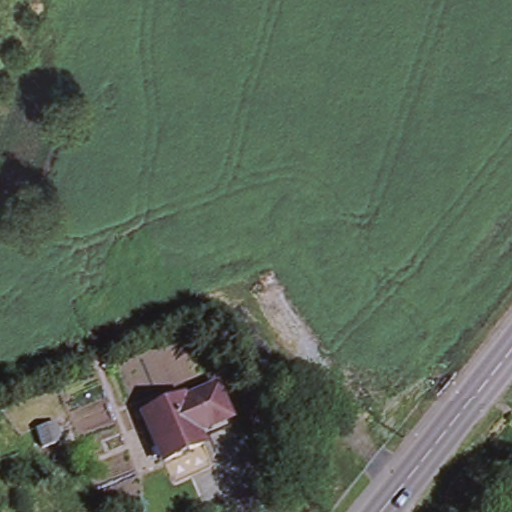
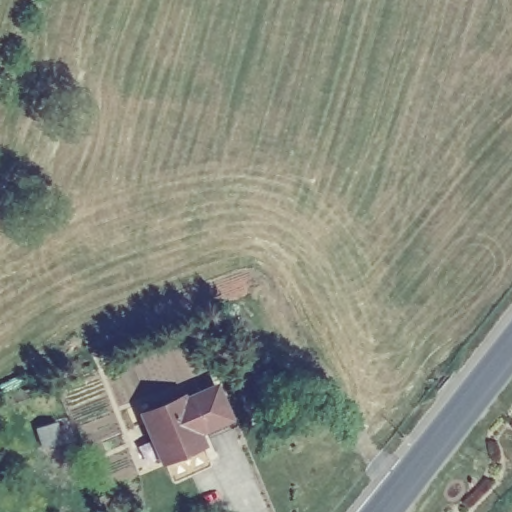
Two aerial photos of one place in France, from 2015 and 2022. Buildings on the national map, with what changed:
unchanged [(229,412),(194,428),(199,442),(162,458),(140,410),(180,392),(182,397),(216,381),(229,412)]
unchanged [(55,419),(62,439),(42,446),(35,426),(55,419)]

